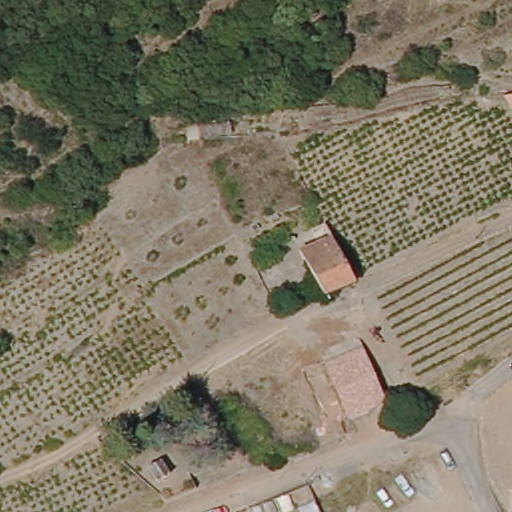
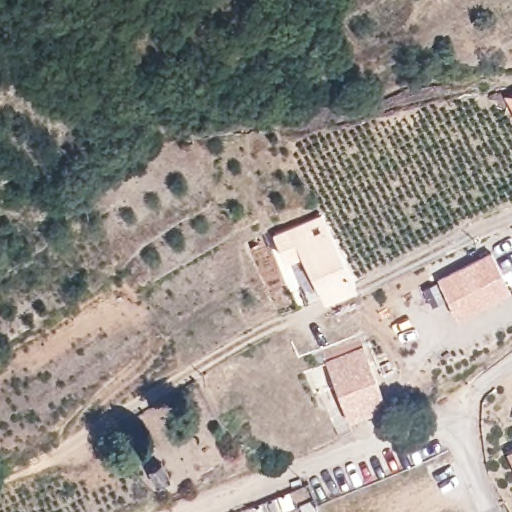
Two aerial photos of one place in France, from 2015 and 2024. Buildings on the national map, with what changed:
unchanged [(510,94),(512,94),(512,97),(510,94)]
unchanged [(325,296),(300,250),(293,238),(326,222),(332,235),(357,283),(325,296)]
unchanged [(247,255),(243,246),(252,242),(256,252),(247,255)]
new [(457,319),(437,280),(492,252),(512,291),(457,319)]
unchanged [(364,351),(387,398),(354,414),(331,367),(364,351)]
new [(506,451),(512,449),(512,463),(506,451)]
unchanged [(133,458),(146,452),(155,466),(141,473),(133,458)]
demolished [(164,461),(177,455),(186,470),(172,476),(164,461)]

